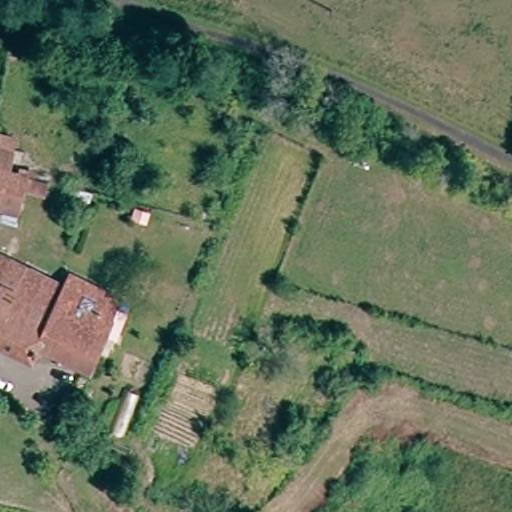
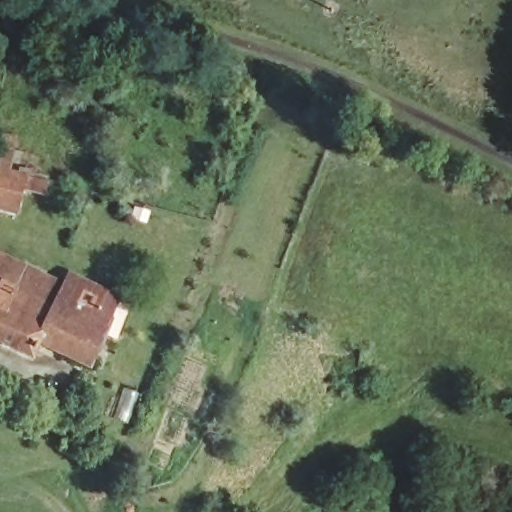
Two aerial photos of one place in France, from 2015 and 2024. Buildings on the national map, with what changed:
unchanged [(30,179),(24,212),(0,207),(0,148),(21,152),(16,175),(30,179)]
unchanged [(11,266),(55,286),(51,292),(46,305),(2,286),(8,275),(11,266)]
unchanged [(2,286),(46,305),(51,292),(73,302),(76,295),(81,287),(125,307),(93,371),(56,353),(46,369),(0,347),(0,270),(8,275),(2,286)]
unchanged [(81,435),(68,429),(81,405),(94,410),(81,435)]

